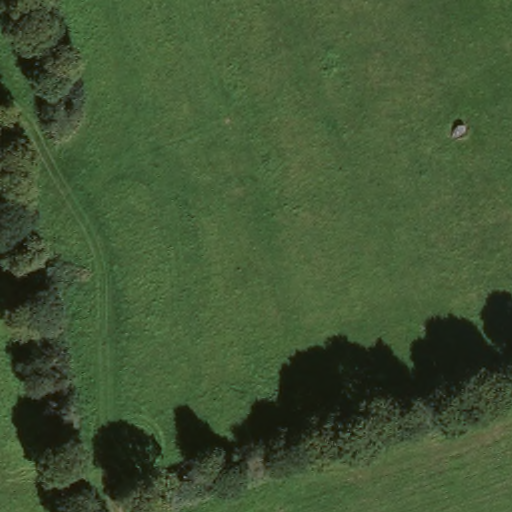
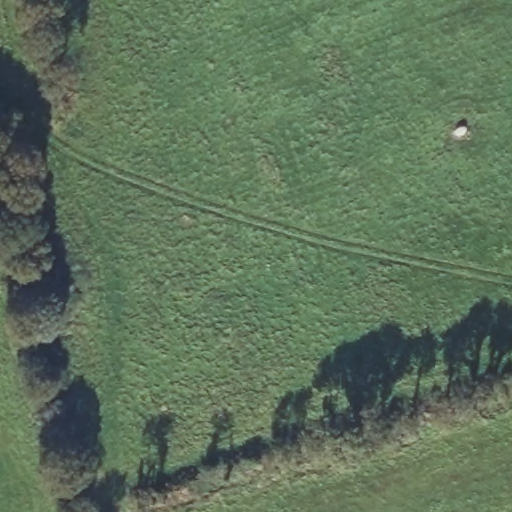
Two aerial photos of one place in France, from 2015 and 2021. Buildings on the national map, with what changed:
[]

